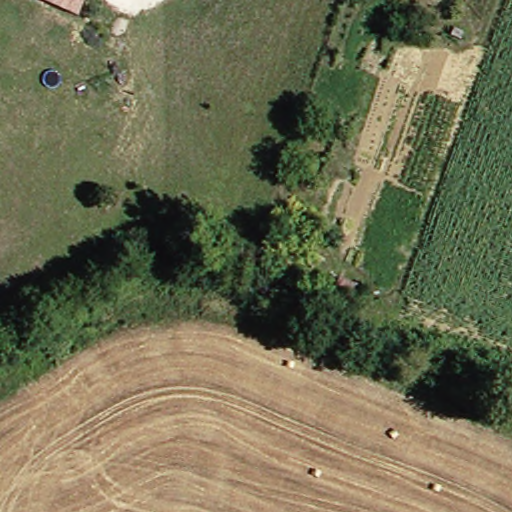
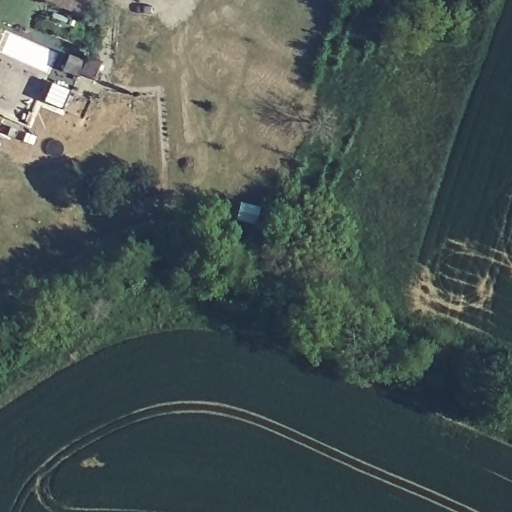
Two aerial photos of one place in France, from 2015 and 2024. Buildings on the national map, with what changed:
unchanged [(68,14),(33,0),(74,0),(68,14)]

